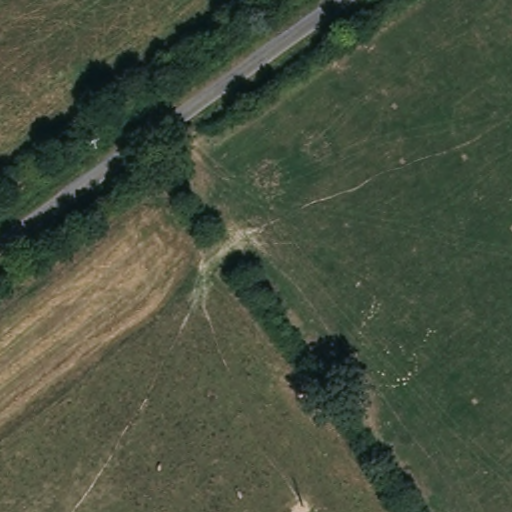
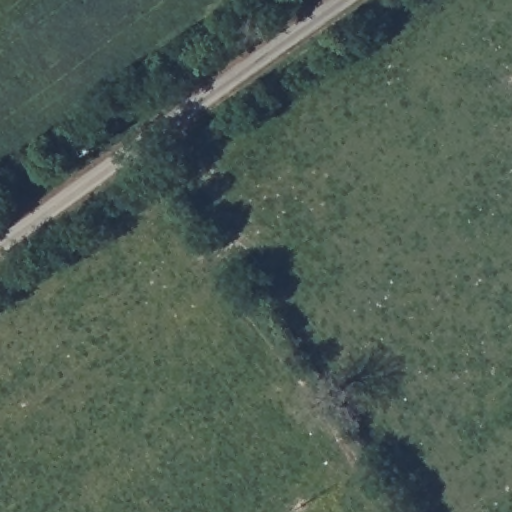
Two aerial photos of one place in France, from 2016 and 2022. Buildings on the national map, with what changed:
[]

